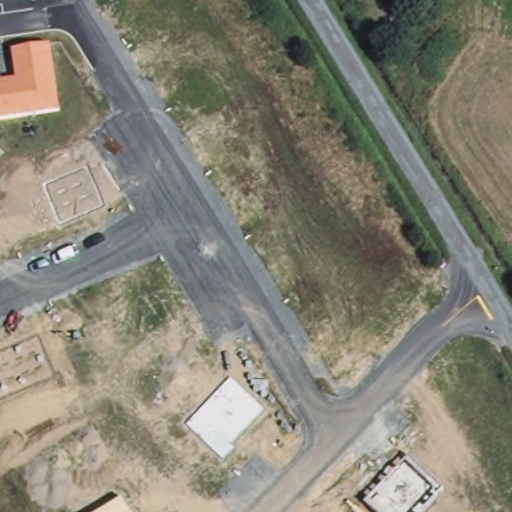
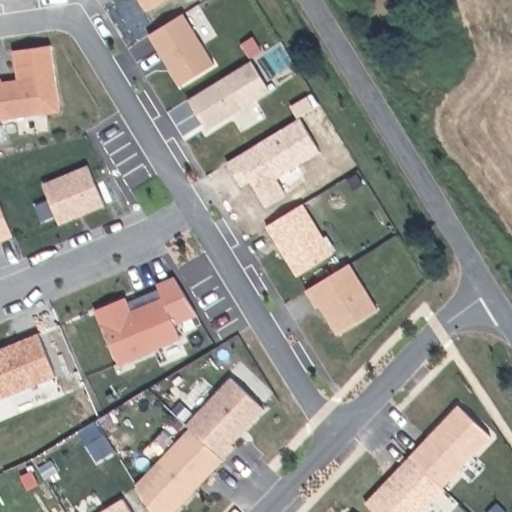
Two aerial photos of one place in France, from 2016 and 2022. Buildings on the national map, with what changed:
new [(150,3),(148,0),(154,0),(150,3)]
new [(150,33),(184,11),(215,62),(181,84),(170,67),(159,47),(150,33)]
unchanged [(2,77),(3,81),(17,79),(13,51),(52,45),(61,112),(0,122),(0,78),(2,77)]
new [(251,58),(270,88),(207,127),(189,97),(251,58)]
new [(275,132),(303,179),(265,202),(245,170),(241,172),(232,158),(275,132)]
new [(89,164),(105,204),(60,222),(44,182),(89,164)]
new [(14,234),(0,240),(0,201),(14,234)]
new [(304,202),(331,247),(295,269),(267,224),(304,202)]
new [(350,261),(379,307),(338,332),(320,304),(317,305),(306,288),(350,261)]
new [(126,295),(132,309),(164,296),(158,282),(175,275),(199,313),(175,322),(181,336),(119,362),(96,308),(126,295)]
new [(39,332),(57,375),(0,398),(0,348),(39,332)]
unchanged [(264,411),(232,447),(235,449),(225,461),(185,426),(230,380),(264,411)]
new [(492,434),(444,485),(411,454),(460,403),(492,434)]
new [(195,489),(173,512),(155,512),(137,483),(190,430),(222,458),(213,470),(195,489)]
unchanged [(423,512),(372,512),(365,505),(410,457),(445,489),(423,512)]
unchanged [(103,512),(124,499),(131,512),(103,512)]

